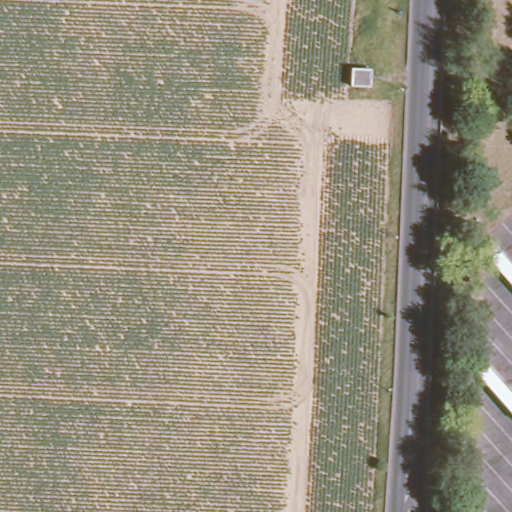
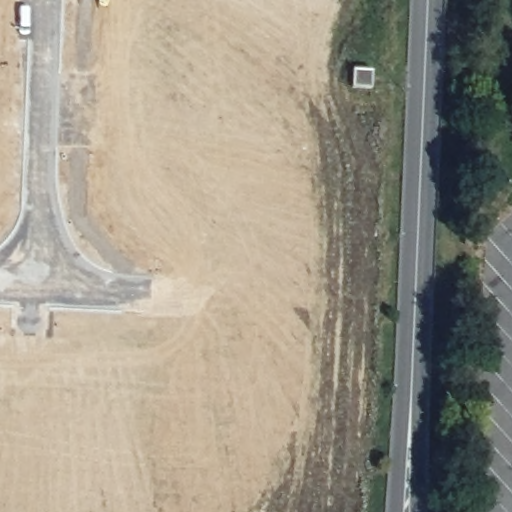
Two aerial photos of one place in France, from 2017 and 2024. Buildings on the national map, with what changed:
unchanged [(374,76),(373,94),(355,94),(355,75),(374,76)]

